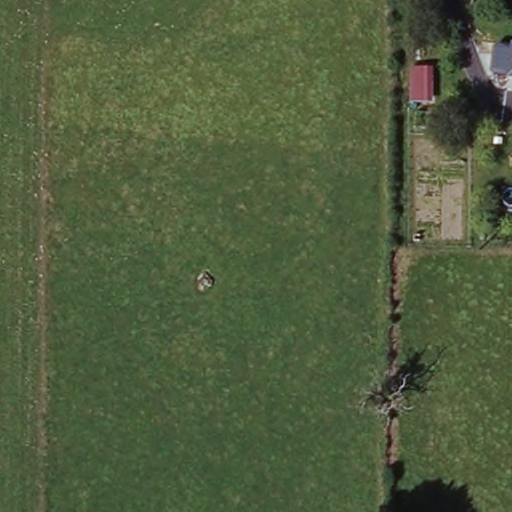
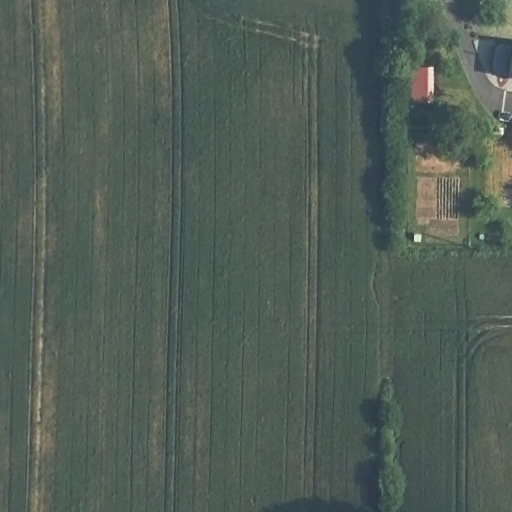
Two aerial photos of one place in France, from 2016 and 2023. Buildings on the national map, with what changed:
unchanged [(512,74),(506,73),(512,39),(512,40),(512,74)]
unchanged [(415,108),(430,110),(429,125),(413,124),(415,108)]

